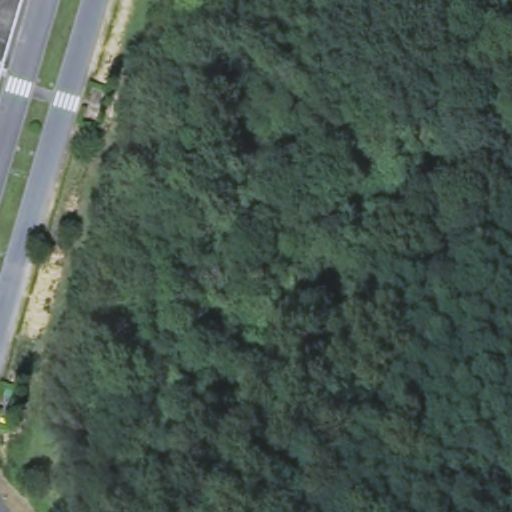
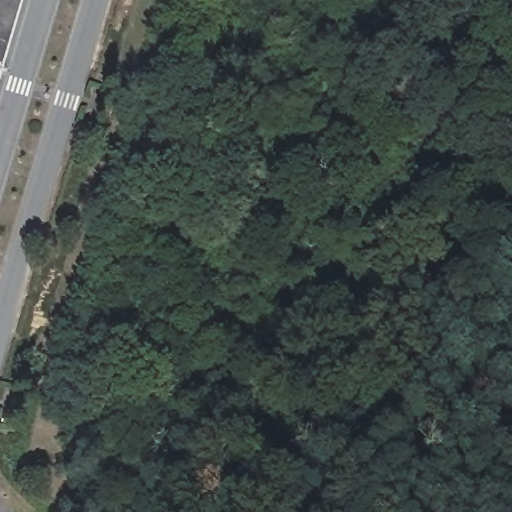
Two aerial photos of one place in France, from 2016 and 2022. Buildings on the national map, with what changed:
unchanged [(0,0),(24,0),(0,81),(0,0)]

